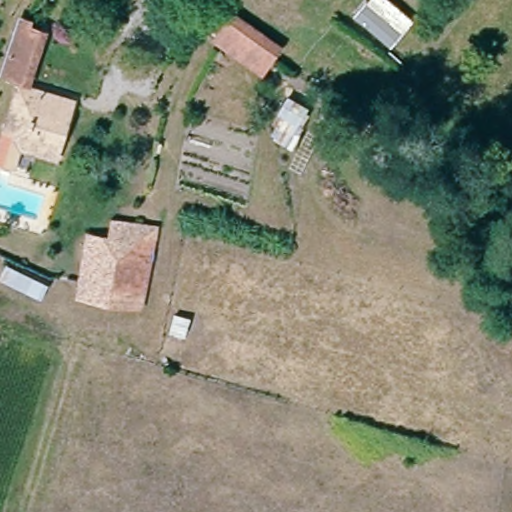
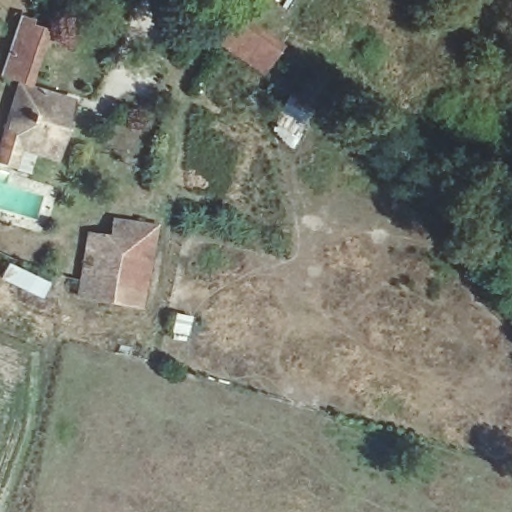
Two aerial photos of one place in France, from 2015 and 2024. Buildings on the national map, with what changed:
demolished [(394,54),(361,26),(381,0),(387,0),(416,22),(394,54)]
unchanged [(279,50),(259,79),(203,42),(227,9),(279,50)]
unchanged [(25,32),(41,39),(22,84),(8,77),(25,32)]
unchanged [(0,165),(0,130),(12,86),(63,102),(48,157),(14,146),(7,167),(0,165)]
unchanged [(123,301),(80,300),(82,230),(108,231),(109,217),(125,218),(123,301)]
unchanged [(123,301),(125,218),(155,221),(146,302),(123,301)]

